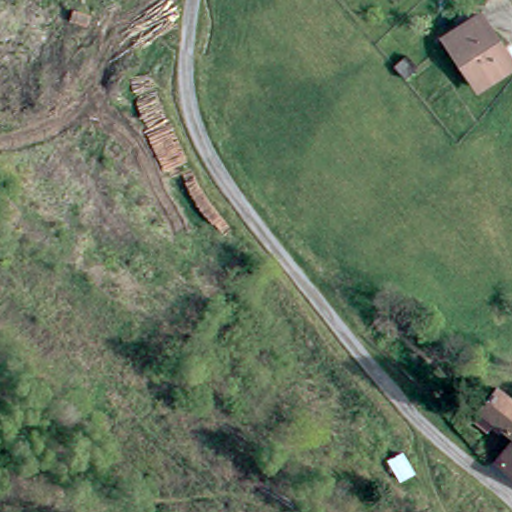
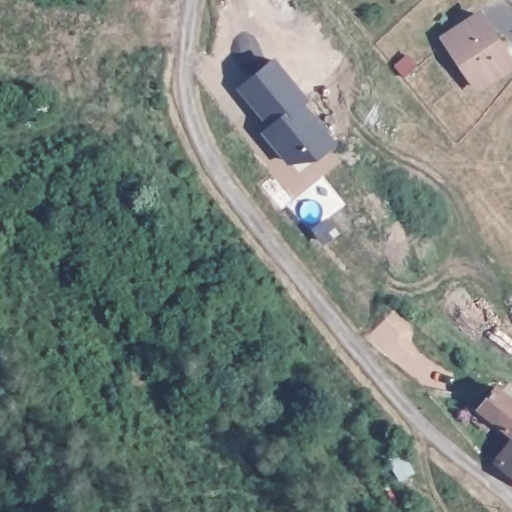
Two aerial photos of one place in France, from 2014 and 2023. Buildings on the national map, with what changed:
unchanged [(472,18),(509,64),(480,87),(442,41),(472,18)]
new [(312,100),(307,104),(340,143),(320,159),(289,164),(262,131),(268,126),(237,89),(276,56),(312,100)]
unchanged [(512,434),(491,416),(512,393),(512,434)]
unchanged [(512,445),(512,479),(495,464),(512,445)]

